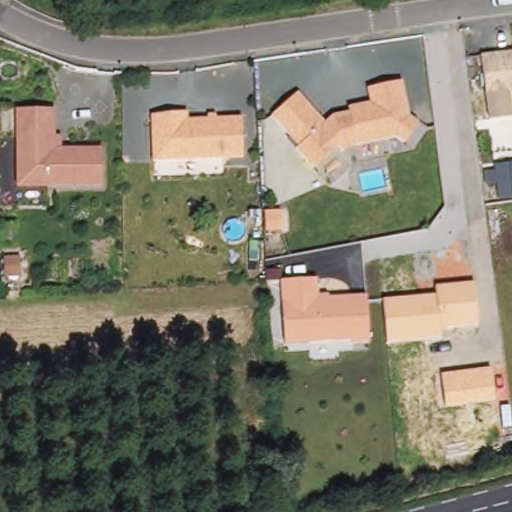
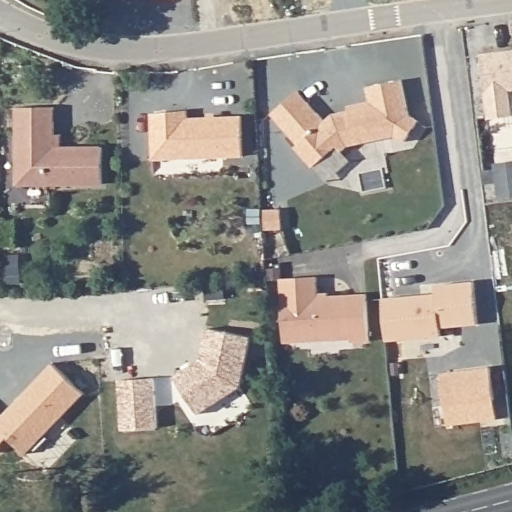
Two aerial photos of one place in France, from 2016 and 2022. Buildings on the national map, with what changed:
unchanged [(483,94),(478,55),(512,51),(512,90),(483,94)]
unchanged [(406,143),(397,137),(350,146),(344,151),(339,146),(315,167),(298,147),(300,145),(273,114),(299,91),(327,122),(334,115),(372,107),(373,105),(369,87),(403,80),(411,116),(419,122),(406,143)]
unchanged [(98,170),(99,184),(13,184),(13,107),(50,107),(50,134),(58,134),(58,147),(98,147),(98,170)]
unchanged [(152,160),(150,113),(189,110),(189,116),(243,114),(244,155),(152,160)]
new [(512,168),(512,198),(502,199),(498,170),(512,168)]
unchanged [(281,280),(317,278),(317,293),(328,291),(328,297),(368,293),(372,344),(354,344),(354,338),(285,344),(281,280)]
unchanged [(383,300),(435,296),(434,287),(475,280),(479,324),(439,329),(440,339),(387,344),(383,300)]
new [(251,337),(240,386),(200,413),(177,377),(200,358),(207,328),(251,337)]
new [(84,393),(24,453),(8,438),(14,430),(1,419),(54,364),(84,393)]
unchanged [(494,401),(444,408),(440,374),(492,367),(494,401)]
new [(8,438),(0,446),(0,418),(1,419),(14,430),(8,438)]

